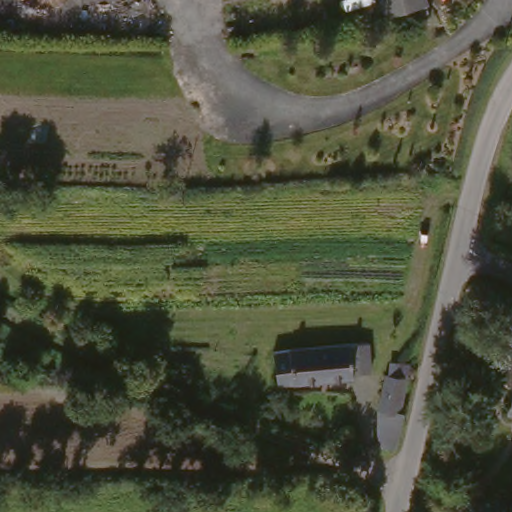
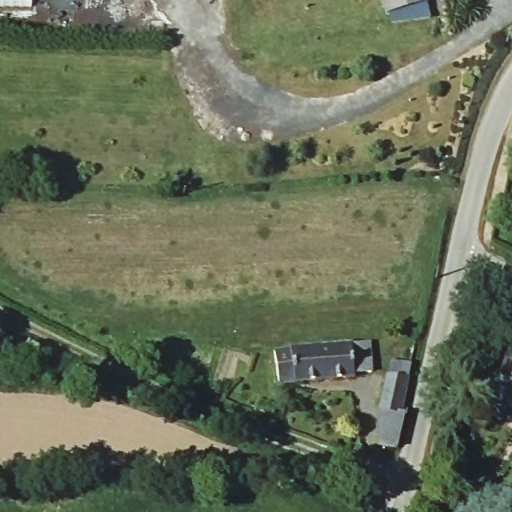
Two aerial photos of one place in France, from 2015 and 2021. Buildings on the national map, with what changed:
unchanged [(390,15),(386,0),(434,0),(390,15)]
unchanged [(512,334),(512,375),(500,372),(509,333),(512,334)]
unchanged [(354,373),(354,377),(294,382),(278,385),(273,352),(289,349),(351,343),(369,342),(371,372),(354,373)]
unchanged [(378,410),(387,373),(389,360),(411,362),(408,376),(401,411),(406,412),(396,448),(378,445),(378,410)]
unchanged [(512,380),(512,404),(506,402),(512,380)]

